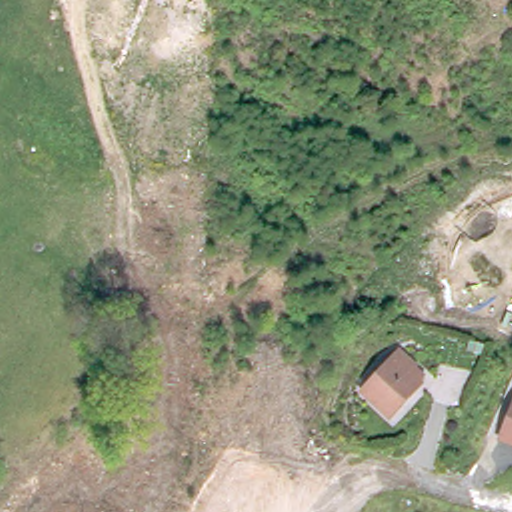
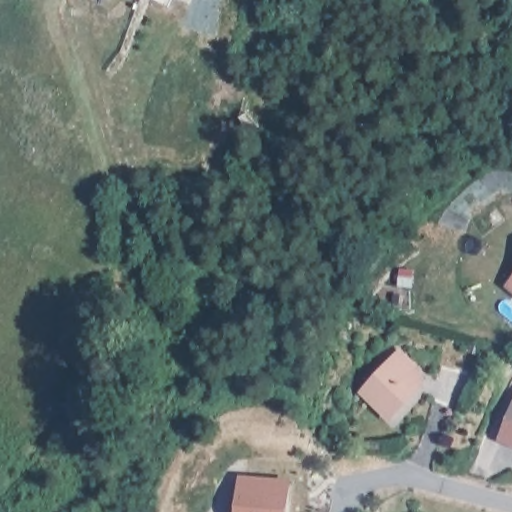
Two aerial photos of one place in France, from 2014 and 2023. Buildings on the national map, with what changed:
unchanged [(480,340),(492,343),(490,352),(478,350),(480,340)]
unchanged [(364,395),(395,353),(408,363),(421,373),(415,382),(391,415),(364,395)]
unchanged [(506,439),(512,424),(512,441),(506,439)]
new [(289,512),(236,512),(239,475),(292,478),(289,512)]

